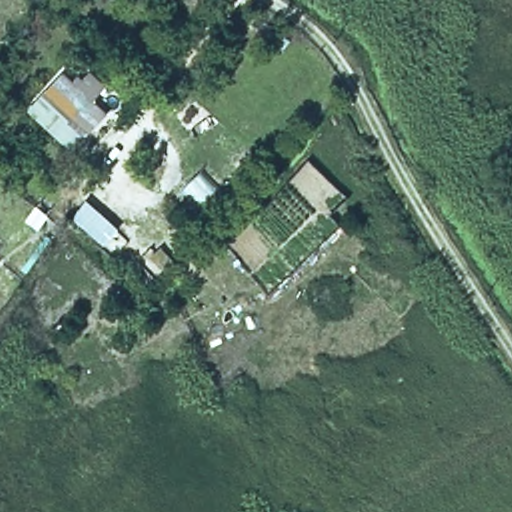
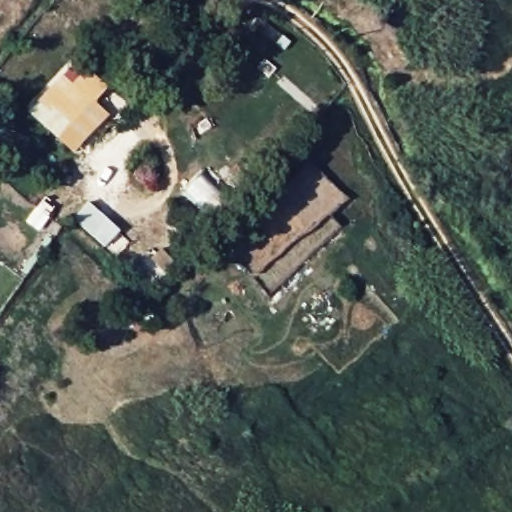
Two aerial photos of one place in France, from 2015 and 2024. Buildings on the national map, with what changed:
unchanged [(73,81),(78,76),(83,81),(92,72),(106,85),(93,99),(106,111),(85,134),(51,105),(46,112),(35,101),(62,74),(73,81)]
unchanged [(115,235),(100,254),(67,226),(82,207),(115,235)]

